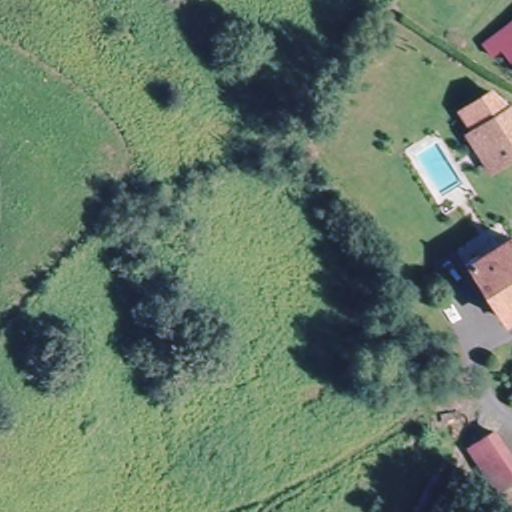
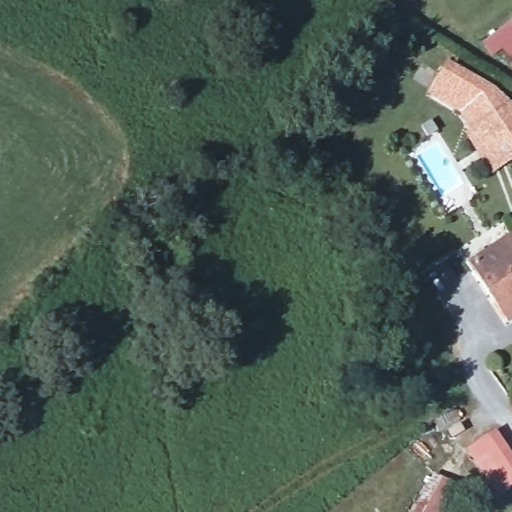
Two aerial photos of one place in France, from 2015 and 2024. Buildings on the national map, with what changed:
unchanged [(483,41),(512,17),(512,70),(483,41)]
new [(498,93),(496,95),(465,112),(476,133),(474,134),(460,113),(428,95),(446,62),(498,93)]
unchanged [(476,133),(465,112),(496,95),(512,113),(512,160),(505,164),(491,172),(471,136),(476,133)]
unchanged [(512,244),(512,313),(505,317),(474,266),(512,244)]
unchanged [(467,448),(495,426),(512,451),(512,485),(498,495),(467,448)]

